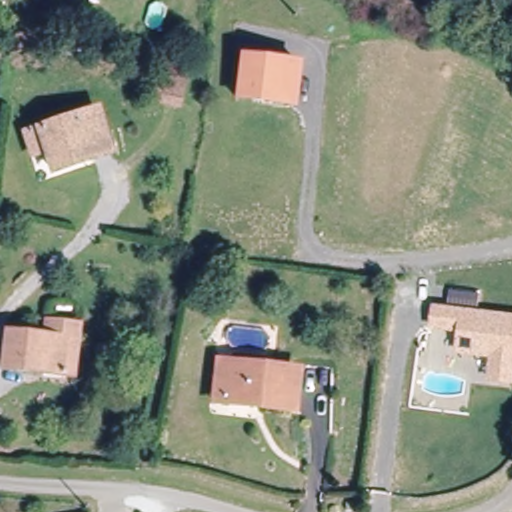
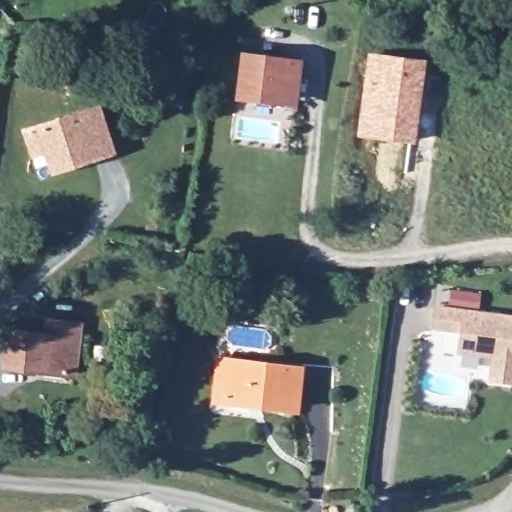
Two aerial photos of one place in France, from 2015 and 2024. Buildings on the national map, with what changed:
new [(367,51),(425,59),(413,144),(355,136),(367,51)]
unchanged [(293,104),(238,96),(244,54),(300,61),(293,104)]
unchanged [(171,102),(147,99),(150,80),(174,85),(171,102)]
unchanged [(113,147),(95,155),(58,165),(47,139),(30,144),(24,125),(42,119),(96,101),(113,147)]
unchanged [(448,289),(479,294),(477,310),(512,315),(512,387),(487,385),(490,359),(456,354),(457,334),(428,330),(432,305),(446,306),(448,289)]
unchanged [(58,374),(0,370),(2,333),(36,334),(38,316),(73,317),(72,335),(70,375),(58,374)]
unchanged [(287,411),(220,401),(209,400),(215,357),(227,358),(293,368),(287,411)]

